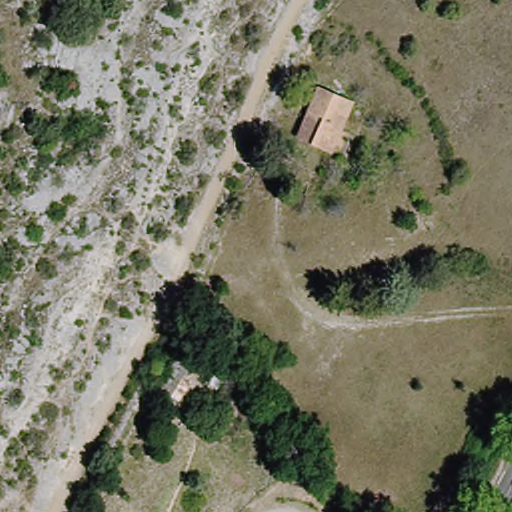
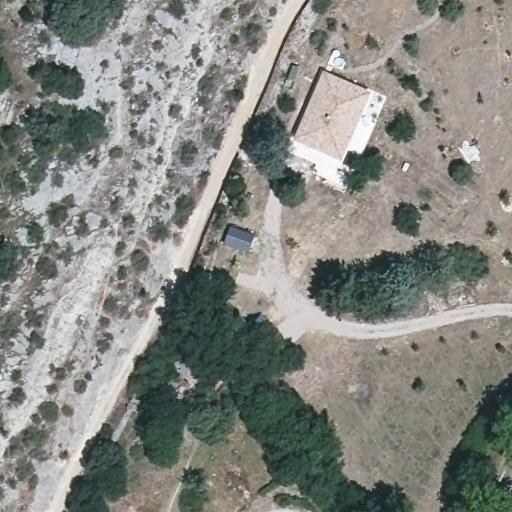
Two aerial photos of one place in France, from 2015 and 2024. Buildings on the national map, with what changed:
unchanged [(335,151),(295,133),(315,83),(355,97),(335,151)]

